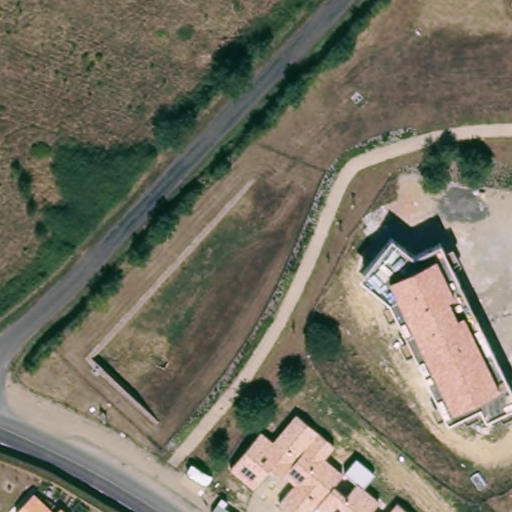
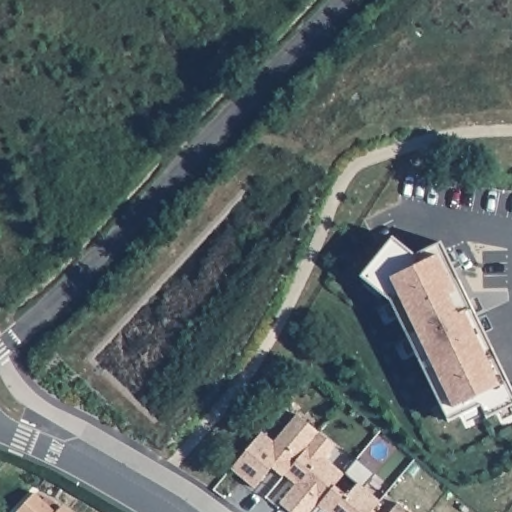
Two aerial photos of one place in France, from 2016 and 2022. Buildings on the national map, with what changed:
unchanged [(359,275),(391,236),(412,255),(441,241),(512,391),(512,407),(486,420),(479,406),(446,422),(388,301),(359,275)]
unchanged [(262,431),(273,440),(297,413),(334,446),(325,456),(345,473),(335,486),(346,495),(357,483),(347,475),(359,461),(373,473),(362,486),(379,501),(373,509),(377,512),(288,512),(278,504),(295,483),(286,474),(282,479),(269,468),(253,487),(231,468),(262,431)]
unchanged [(34,494),(55,512),(18,512),(34,494)]
unchanged [(398,503),(407,512),(390,512),(398,503)]
unchanged [(61,509),(65,512),(59,512),(61,509)]

